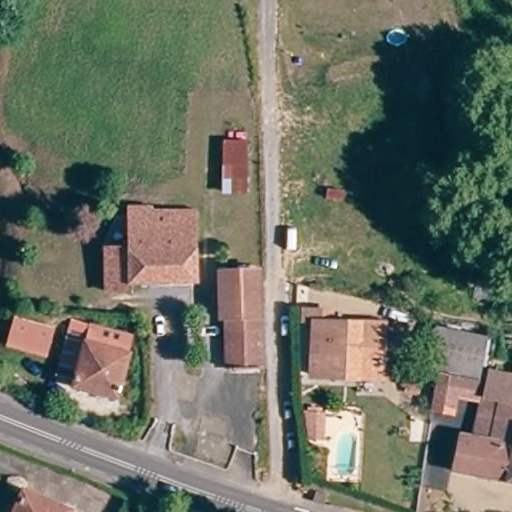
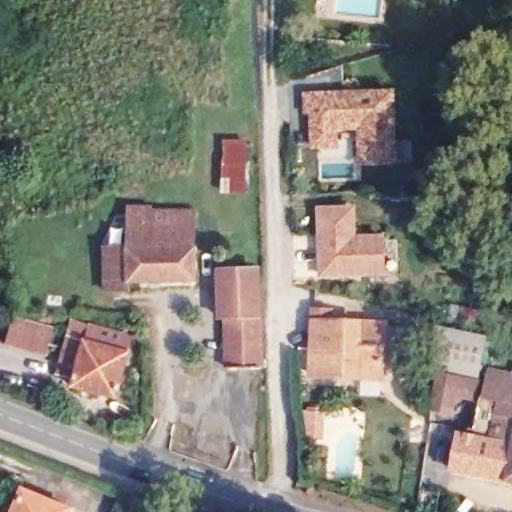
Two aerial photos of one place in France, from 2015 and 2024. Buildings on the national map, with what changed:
new [(345,97),(395,96),(397,165),(363,166),(362,131),(338,131),(339,149),(315,150),(314,115),(309,115),(308,98),(337,97),(345,97)]
unchanged [(225,145),(245,145),(245,194),(225,194),(225,145)]
unchanged [(196,283),(130,283),(130,292),(106,292),(106,250),(130,250),(129,216),(134,216),(134,210),(153,210),(153,214),(195,215),(196,283)]
new [(355,212),(355,242),(383,241),(385,276),(323,277),(321,214),(355,212)]
unchanged [(260,361),(265,361),(266,368),(260,368),(260,370),(228,370),(226,320),(220,320),(219,272),(257,271),(260,361)]
unchanged [(332,378),(311,377),(314,323),(301,322),(302,312),(330,314),(330,324),(385,326),(382,372),(382,380),(332,378)]
unchanged [(27,325),(29,325),(50,330),(44,358),(9,349),(15,321),(27,325)]
unchanged [(75,380),(57,376),(70,325),(70,322),(80,325),(88,326),(75,380)]
unchanged [(116,400),(72,388),(75,380),(88,326),(130,337),(125,354),(128,355),(116,400)]
unchanged [(448,373),(427,370),(436,327),(488,338),(480,380),(448,373)]
unchanged [(452,471),(458,437),(474,440),(490,372),(506,376),(512,377),(512,483),(452,471)]
unchanged [(470,428),(438,422),(448,373),(480,380),(470,428)]
unchanged [(305,420),(322,420),(323,440),(305,440),(305,420)]
unchanged [(72,505),(70,512),(13,512),(24,485),(72,505)]

